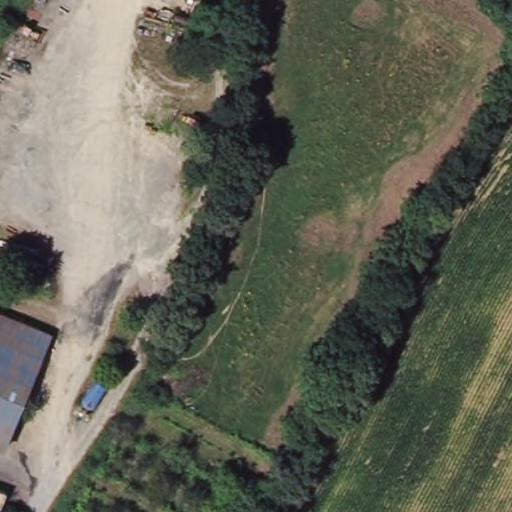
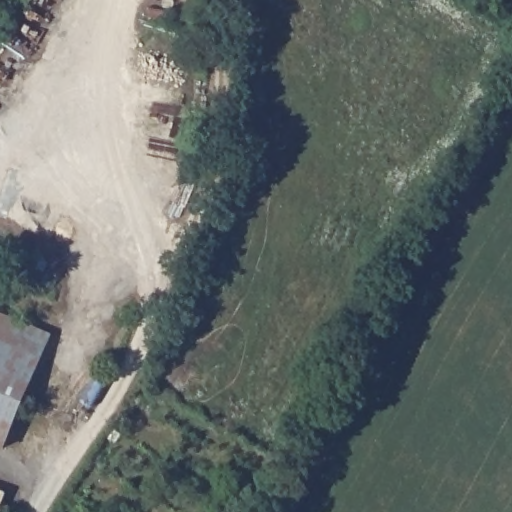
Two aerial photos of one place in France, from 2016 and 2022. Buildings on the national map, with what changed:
unchanged [(47,331),(3,446),(0,445),(0,313),(47,331)]
unchanged [(5,491),(0,506),(0,490),(5,491)]

